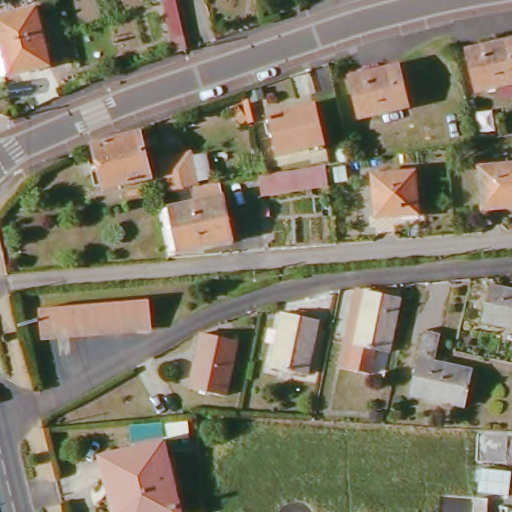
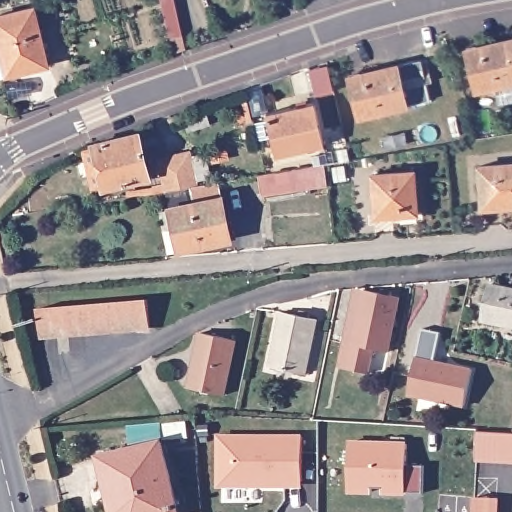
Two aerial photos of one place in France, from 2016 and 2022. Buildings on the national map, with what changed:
unchanged [(170,0),(185,0),(195,44),(180,49),(170,0)]
unchanged [(0,18),(37,9),(51,65),(10,75),(0,33),(0,18)]
unchanged [(472,50),(512,41),(512,83),(481,90),(472,50)]
unchanged [(355,77),(401,66),(411,106),(365,116),(355,77)]
unchanged [(255,84),(257,92),(245,95),(243,87),(255,84)]
unchanged [(265,108),(310,97),(320,140),(273,149),(265,108)]
unchanged [(96,144),(140,133),(150,176),(106,187),(96,144)]
unchanged [(163,159),(195,151),(202,185),(170,190),(163,159)]
unchanged [(485,162),(512,160),(512,201),(506,201),(506,203),(488,204),(485,162)]
unchanged [(270,175),(276,174),(334,165),(336,183),(272,192),(270,175)]
unchanged [(381,211),(377,171),(418,168),(421,209),(381,211)]
unchanged [(170,190),(202,185),(223,182),(235,237),(184,248),(170,190)]
unchanged [(487,315),(495,282),(512,285),(512,321),(487,315)]
unchanged [(393,352),(377,348),(372,371),(345,365),(350,341),(361,291),(367,291),(370,291),(405,299),(393,352)]
unchanged [(73,312),(86,311),(100,310),(105,309),(112,308),(127,307),(140,306),(152,305),(155,334),(141,335),(128,336),(113,337),(101,338),(86,339),(73,340),(60,341),(46,342),(45,315),(60,313),(73,312)]
unchanged [(292,308),(327,315),(317,369),(281,361),(292,308)]
unchanged [(426,333),(443,336),(438,364),(476,371),(470,404),(414,394),(426,333)]
unchanged [(205,334),(240,341),(229,395),(195,388),(205,334)]
new [(476,429),(512,432),(512,461),(475,459),(476,429)]
new [(289,482),(235,482),(221,482),(221,477),(221,433),(305,434),(305,478),(305,482),(289,482)]
new [(351,441),(407,443),(407,464),(425,464),(424,491),(384,490),(384,486),(373,486),(373,490),(350,489),(351,441)]
unchanged [(167,443),(184,509),(178,510),(177,509),(164,512),(131,512),(127,509),(121,481),(113,483),(106,458),(167,443)]
new [(499,497),(498,512),(472,512),(473,495),(499,497)]

